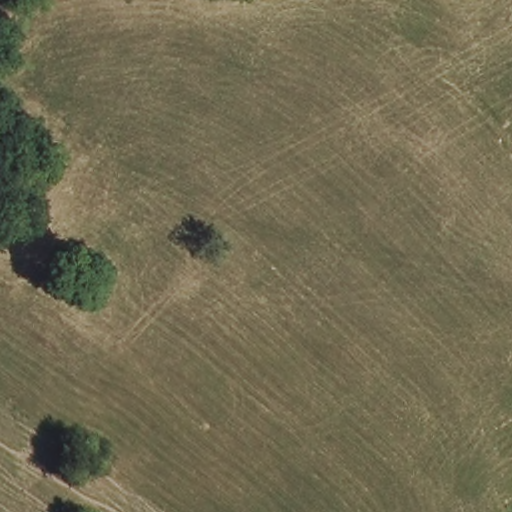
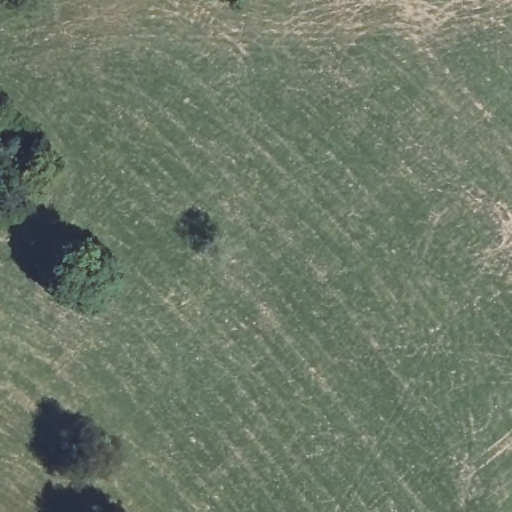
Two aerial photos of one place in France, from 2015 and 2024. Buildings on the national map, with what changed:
unchanged [(1,199),(0,198),(0,139),(21,148),(1,199)]

